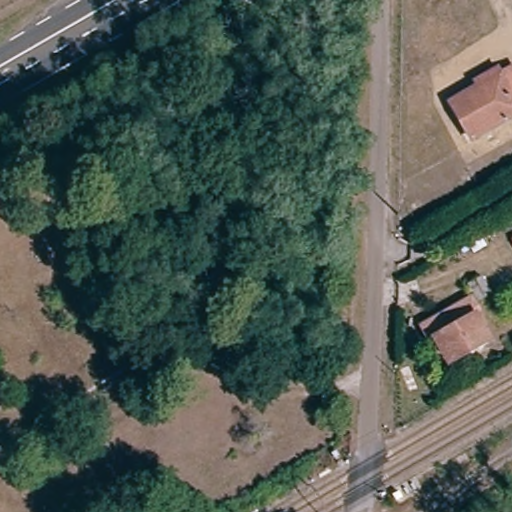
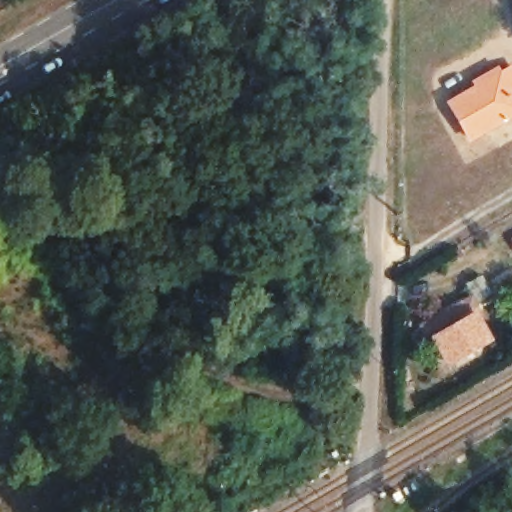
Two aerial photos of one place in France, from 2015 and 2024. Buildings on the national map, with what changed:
unchanged [(451,109),(500,78),(512,72),(512,115),(468,140),(451,109)]
unchanged [(486,281),(495,294),(480,301),(472,288),(486,281)]
unchanged [(446,367),(437,349),(430,354),(424,344),(417,333),(425,328),(467,304),(474,314),(468,318),(483,344),(446,367)]

